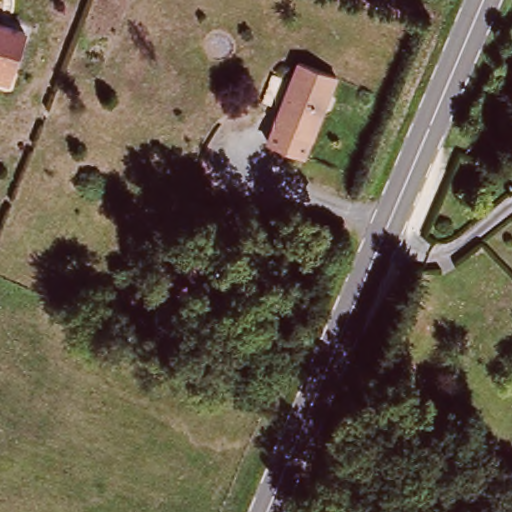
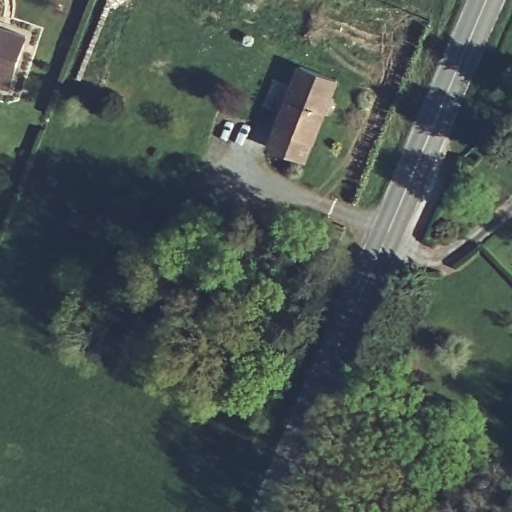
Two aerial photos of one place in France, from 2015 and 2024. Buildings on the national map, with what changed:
unchanged [(18,51),(9,74),(0,70),(0,26),(24,34),(18,51)]
unchanged [(4,88),(0,87),(0,70),(9,74),(4,88)]
unchanged [(274,140),(299,77),(331,91),(306,153),(274,140)]

